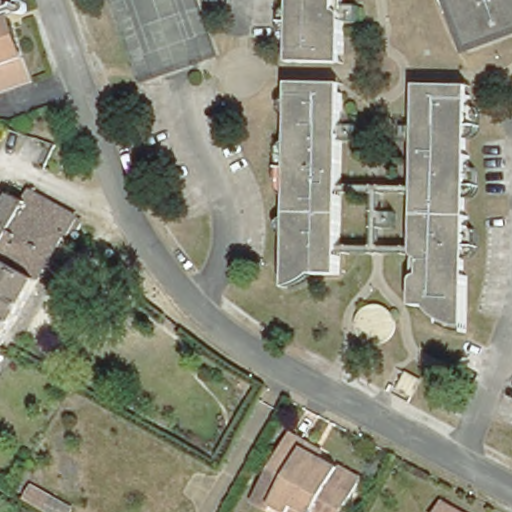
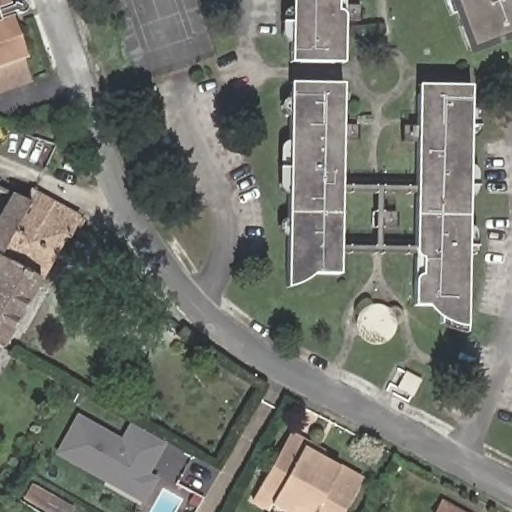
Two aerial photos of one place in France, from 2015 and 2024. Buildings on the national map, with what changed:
unchanged [(282,39),(281,37),(281,35),(281,22),(281,15),(282,12),(284,10),(286,9),(289,7),(292,7),(295,7),(296,0),(343,0),(343,5),(342,21),(342,64),(290,61),(291,43),(289,43),(286,42),(285,41),(283,40),(282,39)]
unchanged [(451,0),(512,0),(512,39),(471,55),(451,0)]
demolished [(4,25),(7,35),(15,32),(26,63),(23,65),(31,86),(0,98),(0,27),(4,25)]
unchanged [(314,278),(313,280),(312,280),(312,281),(311,281),(311,282),(310,282),(310,283),(309,283),(308,283),(308,284),(307,284),(288,288),(288,272),(289,220),(286,220),(283,218),(282,215),(281,212),(282,208),(283,206),(286,205),(290,204),(290,194),(288,194),(286,193),(284,191),(282,190),(281,187),(281,182),(281,167),(282,150),(283,146),(284,145),(286,144),(289,143),(291,143),(292,114),(288,113),(285,111),(283,109),(283,104),(285,100),(287,98),(290,97),(292,97),(292,90),(293,81),(346,83),(345,92),(344,125),(344,135),(343,186),(343,195),(341,245),(341,254),(341,273),(315,272),(314,276),(314,277),(314,278)]
unchanged [(438,331),(435,328),(435,321),(436,310),(409,310),(411,286),(411,251),(412,200),(413,191),(415,140),(415,131),(415,98),(416,89),(469,90),(470,100),(469,111),(471,113),(473,115),(476,117),(477,121),(477,124),(477,127),(476,131),(474,135),(472,137),(469,139),(466,140),(464,140),(463,156),(468,156),(467,169),(470,170),(472,172),(474,175),(475,179),(475,184),(474,187),(474,191),(473,195),(469,198),(467,200),(465,200),(462,200),(462,218),(466,218),(465,231),(468,232),(471,235),(473,237),(474,240),(475,245),(475,247),(475,250),(473,255),(471,258),(469,261),(465,262),(462,264),(462,278),(464,278),(463,322),(462,336),(452,335),(444,333),(438,331)]
unchanged [(0,349),(0,211),(9,195),(23,202),(30,190),(78,217),(66,240),(65,239),(0,349)]
unchanged [(385,308),(389,313),(391,319),(392,325),(390,331),(387,336),(382,340),(376,342),(370,341),(364,340),(359,335),(356,330),(354,325),(355,318),(358,313),(362,308),(367,305),(373,305),(379,305),(385,308)]
new [(158,478),(144,505),(54,455),(76,414),(120,439),(129,423),(166,445),(150,475),(158,478)]
unchanged [(297,511),(297,512),(280,512),(275,510),(274,512),(270,512),(256,505),(293,438),(310,447),(328,457),(325,462),(364,483),(348,512),(299,512),(297,511)]
unchanged [(73,512),(40,512),(21,501),(30,485),(74,510),(73,512)]
unchanged [(437,505),(450,512),(433,512),(437,505)]

